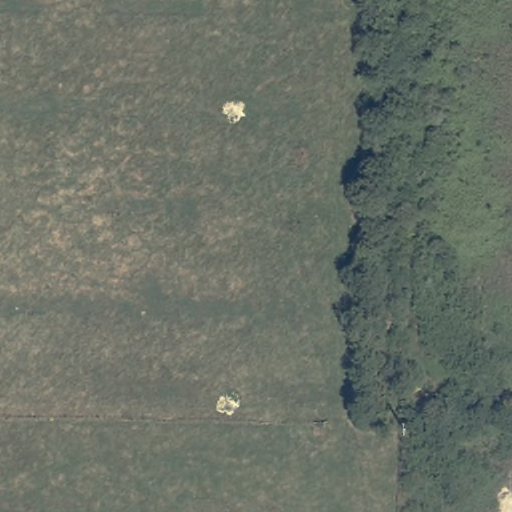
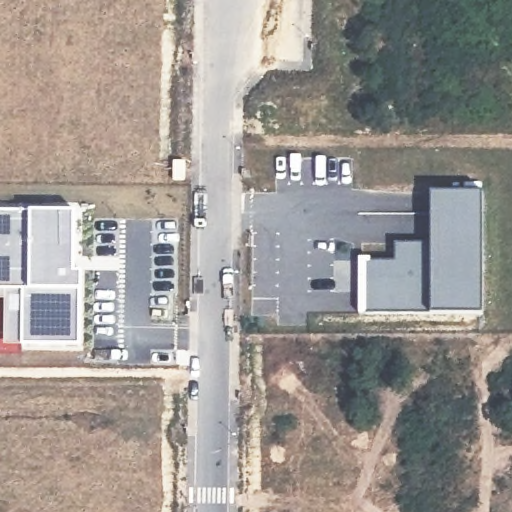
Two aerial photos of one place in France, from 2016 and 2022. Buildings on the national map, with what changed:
new [(483,313),(429,313),(357,314),(357,256),(371,257),(370,261),(393,261),(394,243),(429,243),(430,192),(481,192),(483,313)]
new [(78,273),(78,289),(78,345),(19,345),(18,290),(0,290),(0,210),(73,210),(72,273),(78,273)]

